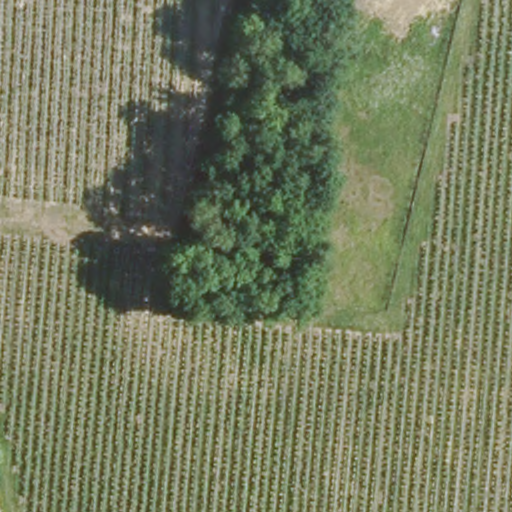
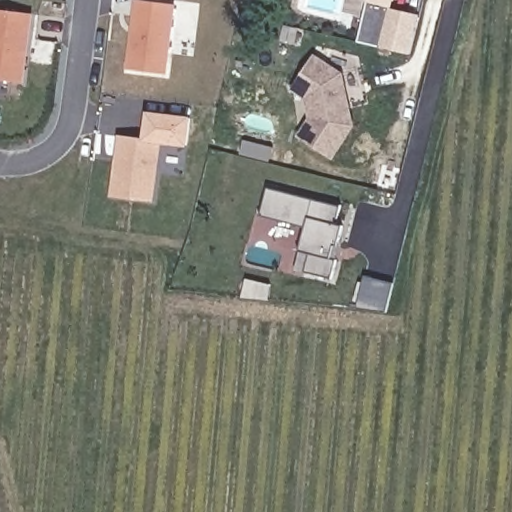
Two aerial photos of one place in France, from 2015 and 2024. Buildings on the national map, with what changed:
new [(390,7),(365,0),(392,0),(390,7)]
new [(137,1),(173,7),(166,76),(129,71),(137,1)]
new [(390,7),(421,15),(411,54),(359,41),(369,1),(390,7)]
new [(22,83),(0,81),(0,11),(31,15),(22,83)]
new [(334,159),(297,134),(309,117),(304,99),(290,90),(315,53),(344,72),(356,124),(334,159)]
new [(119,134),(159,141),(150,207),(110,198),(119,134)]
new [(340,206),(335,223),(344,225),(330,278),(294,269),(304,227),(258,215),(266,187),(340,206)]

